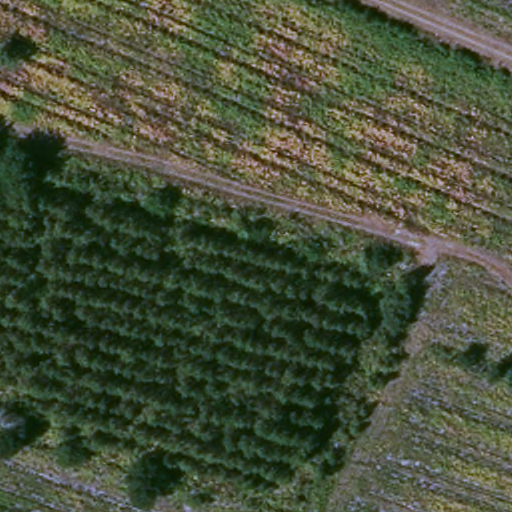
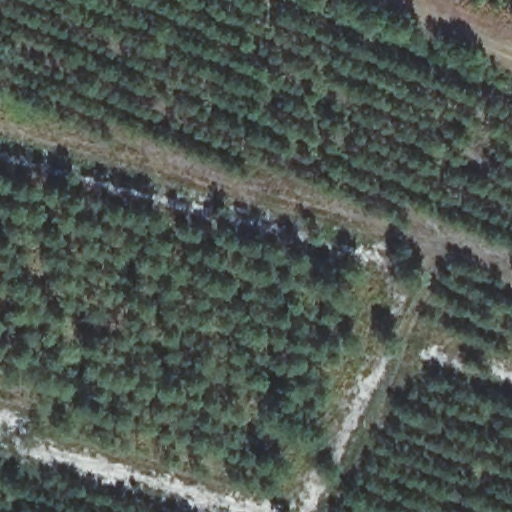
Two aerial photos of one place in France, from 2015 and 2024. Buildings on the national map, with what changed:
[]

